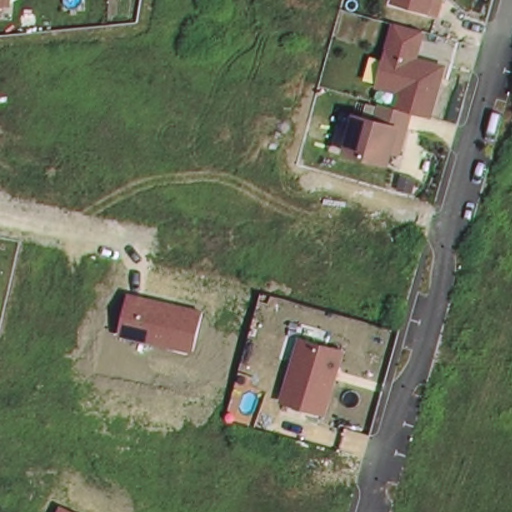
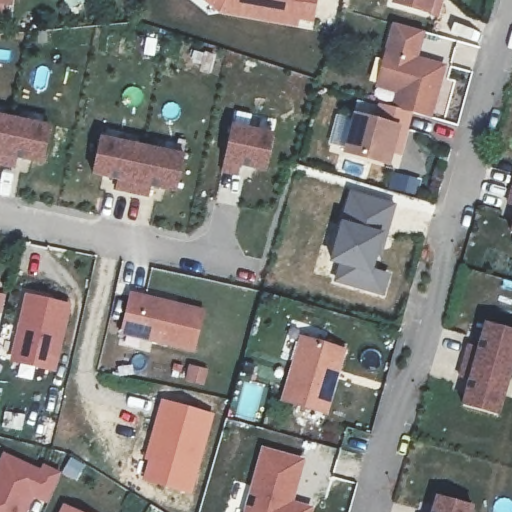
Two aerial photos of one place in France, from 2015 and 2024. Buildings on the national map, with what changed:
unchanged [(0,2),(0,0),(14,0),(13,3),(0,2)]
new [(299,25),(298,28),(239,19),(215,14),(199,0),(318,0),(313,26),(299,25)]
unchanged [(432,13),(392,1),(392,0),(442,0),(438,15),(432,13)]
unchanged [(424,33),(418,59),(445,65),(432,118),(415,112),(402,154),(392,153),(390,166),(342,152),(355,113),(375,119),(379,105),(393,108),(395,95),(375,89),(392,24),(424,33)]
new [(191,48),(215,53),(209,75),(185,68),(191,48)]
new [(12,159),(13,169),(0,166),(0,115),(49,124),(40,164),(12,159)]
new [(263,172),(237,165),(237,175),(220,172),(230,124),(273,131),(263,172)]
new [(175,192),(146,187),(147,198),(114,191),(114,179),(90,174),(98,136),(183,153),(175,192)]
new [(392,170),(421,179),(415,197),(387,189),(392,170)]
new [(505,203),(512,175),(512,204),(505,203)]
new [(348,187),(397,202),(375,268),(390,272),(384,298),(331,283),(336,264),(328,262),(348,187)]
new [(508,231),(512,216),(512,232),(508,231)]
new [(70,295),(55,359),(10,348),(25,283),(70,295)]
unchanged [(201,309),(193,349),(117,333),(128,293),(201,309)]
new [(460,404),(466,379),(456,376),(465,344),(477,347),(482,323),(512,330),(512,367),(498,415),(460,404)]
unchanged [(345,352),(327,414),(282,399),(300,339),(345,352)]
new [(160,397),(215,413),(192,496),(137,481),(160,397)]
new [(40,454),(59,464),(45,496),(35,491),(23,512),(0,512),(0,452),(3,446),(37,463),(40,454)]
new [(260,447),(306,459),(293,501),(313,508),(312,512),(241,512),(260,447)]
new [(472,512),(428,512),(433,495),(473,505),(472,512)]
unchanged [(80,512),(58,512),(62,504),(80,512)]

